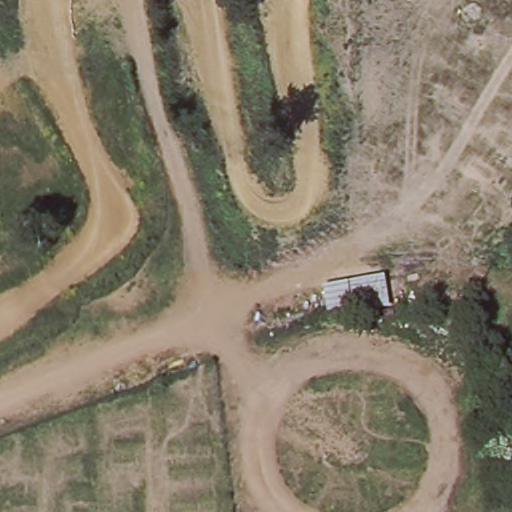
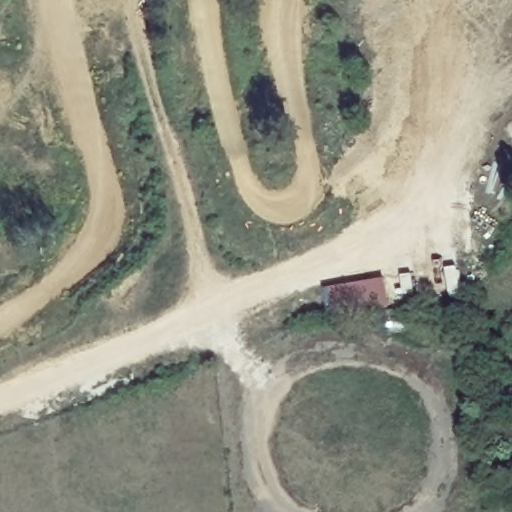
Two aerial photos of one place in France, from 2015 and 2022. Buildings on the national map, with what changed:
unchanged [(381,273),(385,307),(328,313),(325,281),(381,273)]

